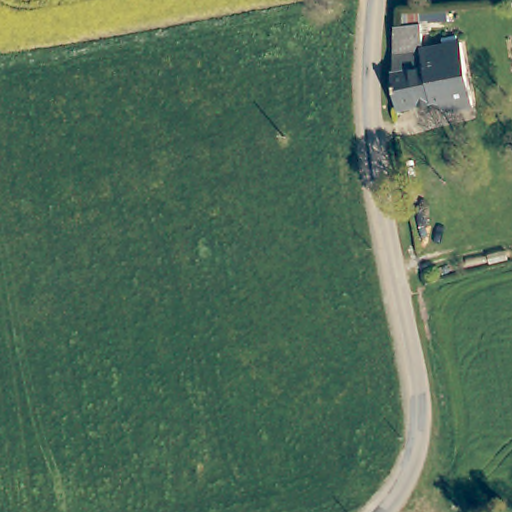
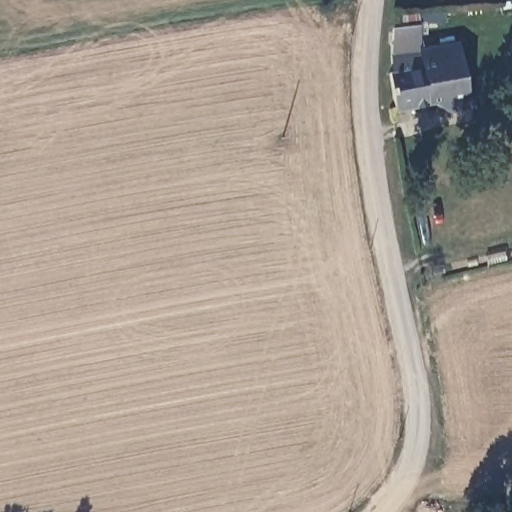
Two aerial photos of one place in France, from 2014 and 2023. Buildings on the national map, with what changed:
unchanged [(393,42),(395,26),(416,24),(419,46),(457,41),(469,107),(447,111),(431,104),(398,113),(394,76),(393,42)]

